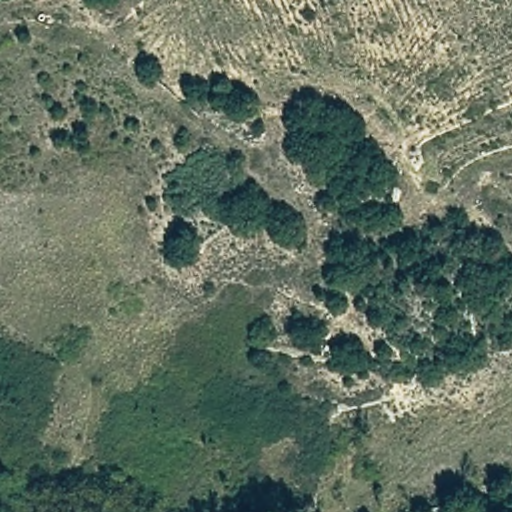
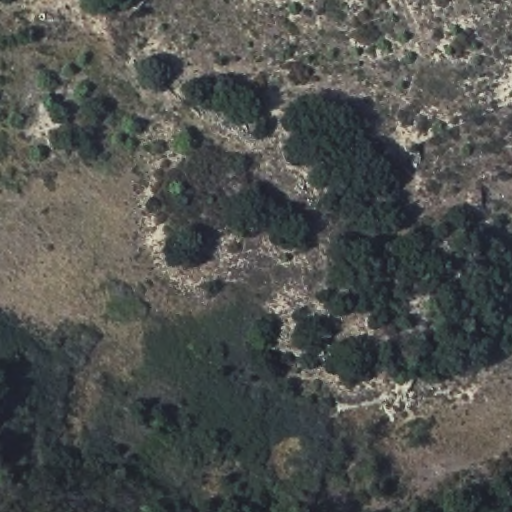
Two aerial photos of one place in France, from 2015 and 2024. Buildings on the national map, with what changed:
[]

